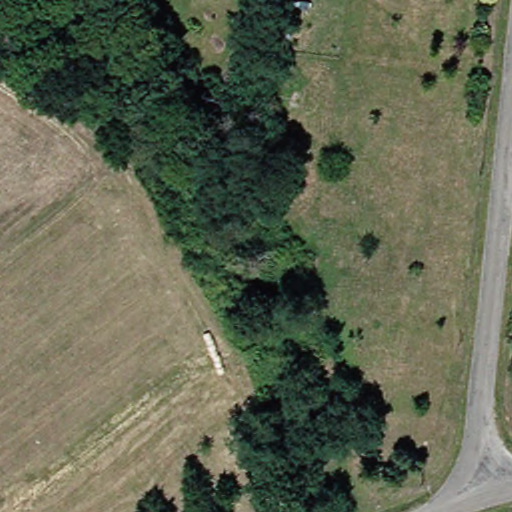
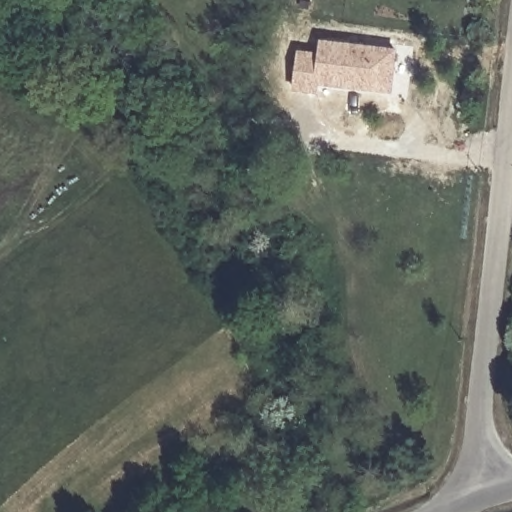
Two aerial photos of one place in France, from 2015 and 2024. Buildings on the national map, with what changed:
new [(393,92),(320,85),(319,92),(293,90),(297,49),(319,51),(321,39),(397,49),(393,92)]

